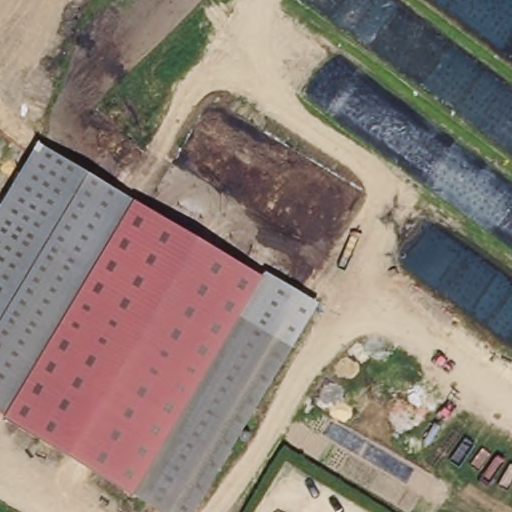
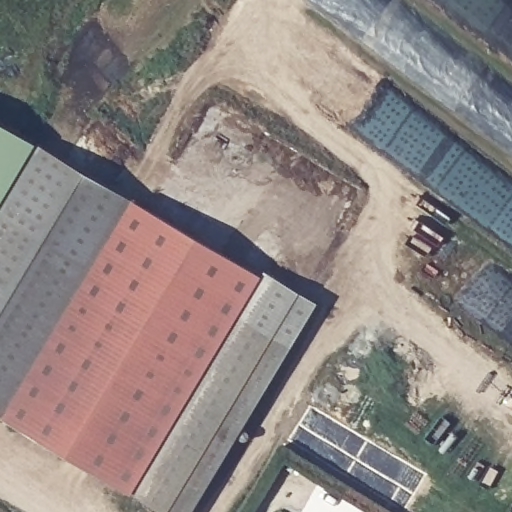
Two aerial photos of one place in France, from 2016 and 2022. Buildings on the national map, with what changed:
new [(0,121),(40,145),(0,211),(0,121)]
unchanged [(0,388),(0,211),(40,145),(118,192),(0,388)]
unchanged [(0,388),(118,192),(264,277),(239,318),(133,495),(0,415),(0,388)]
unchanged [(291,352),(192,512),(162,512),(133,495),(239,318),(291,352)]

